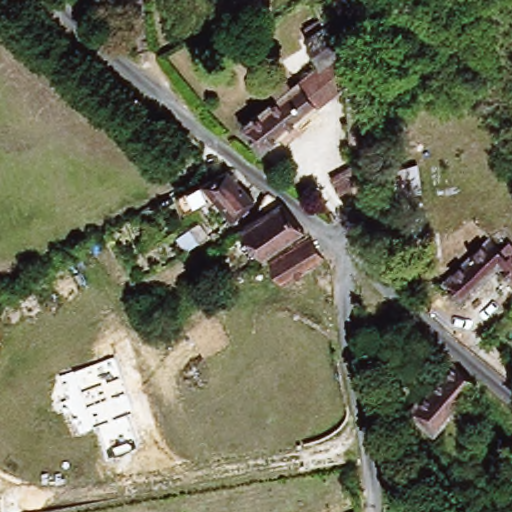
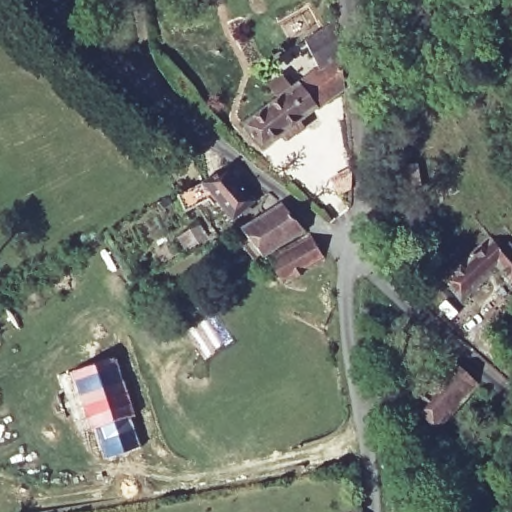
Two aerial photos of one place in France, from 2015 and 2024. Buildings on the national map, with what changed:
unchanged [(281,145),(276,136),(253,150),(233,119),(306,70),(300,44),(336,25),(347,87),(297,121),(305,131),(281,145)]
unchanged [(247,204),(219,219),(210,197),(178,211),(170,189),(223,164),(247,204)]
unchanged [(342,167),(345,206),(330,212),(315,183),(342,167)]
unchanged [(265,256),(262,258),(233,229),(274,199),(311,227),(310,230),(265,256)]
unchanged [(280,282),(265,256),(310,230),(325,256),(280,282)]
unchanged [(494,266),(445,297),(433,274),(493,236),(504,258),(512,253),(512,293),(494,266)]
unchanged [(186,238),(193,253),(178,260),(171,245),(186,238)]
new [(136,415),(132,419),(143,447),(107,459),(100,427),(94,429),(80,434),(61,374),(75,370),(117,356),(136,415)]
unchanged [(446,364),(470,385),(413,458),(395,442),(415,418),(404,409),(446,364)]
unchanged [(368,498),(370,512),(347,512),(353,507),(368,498)]

